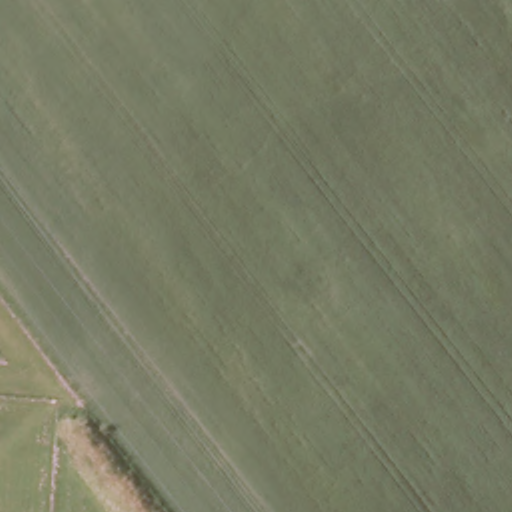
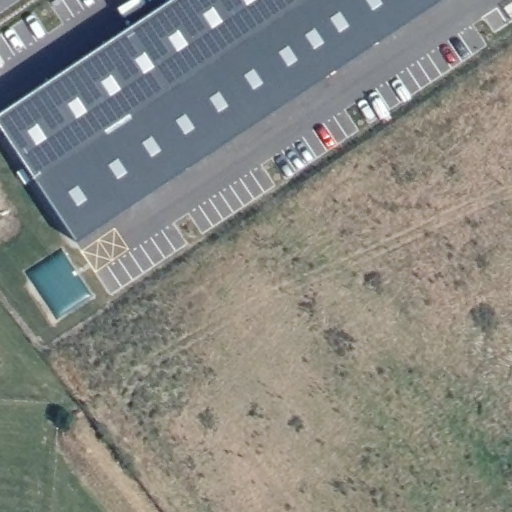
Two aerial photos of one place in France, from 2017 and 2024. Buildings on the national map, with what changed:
new [(0,113),(170,0),(440,0),(77,240),(0,127),(0,113)]

